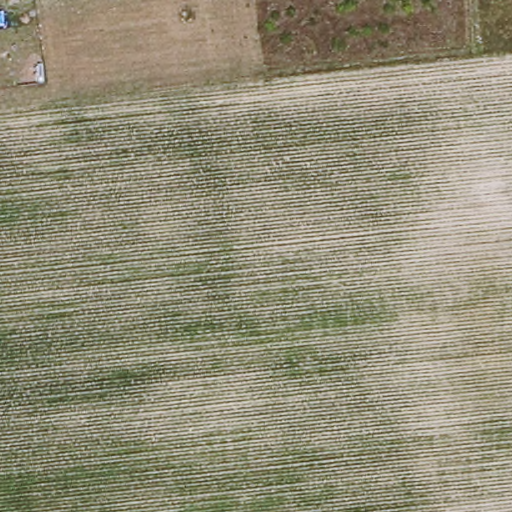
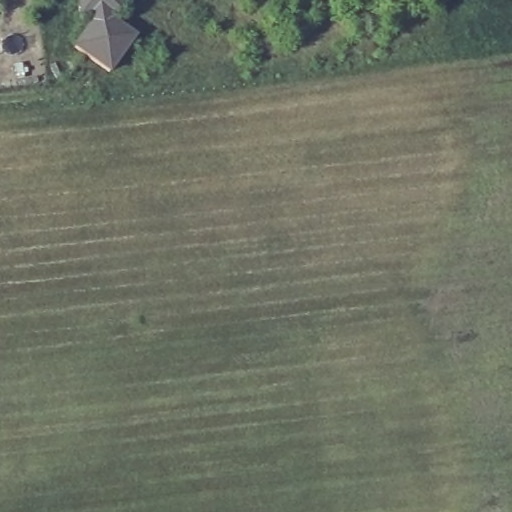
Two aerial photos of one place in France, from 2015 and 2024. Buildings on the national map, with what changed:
new [(89,13),(79,13),(77,0),(118,0),(118,9),(108,10),(109,18),(132,36),(105,70),(71,43),(90,20),(89,13)]

